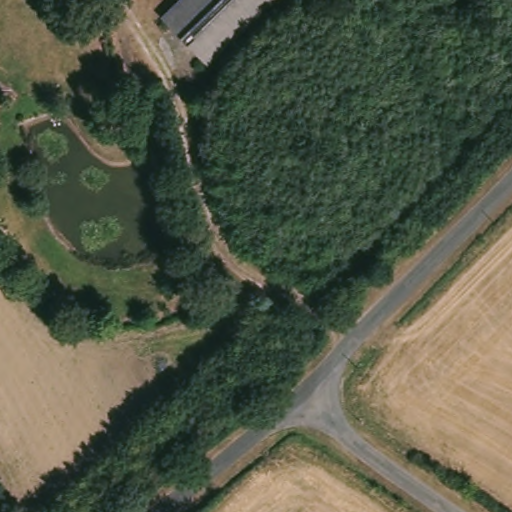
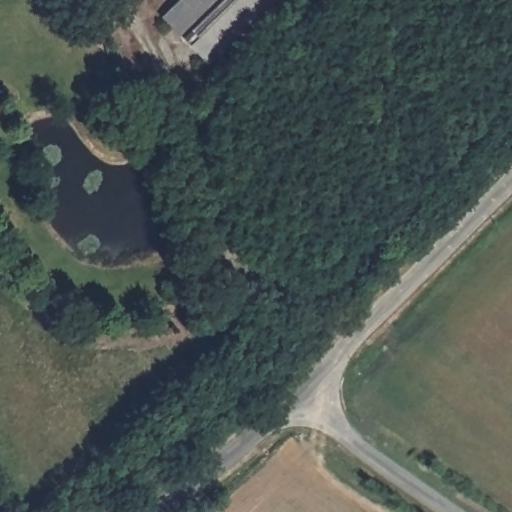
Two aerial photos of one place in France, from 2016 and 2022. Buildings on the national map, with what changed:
unchanged [(204,60),(160,15),(176,0),(267,0),(204,60)]

